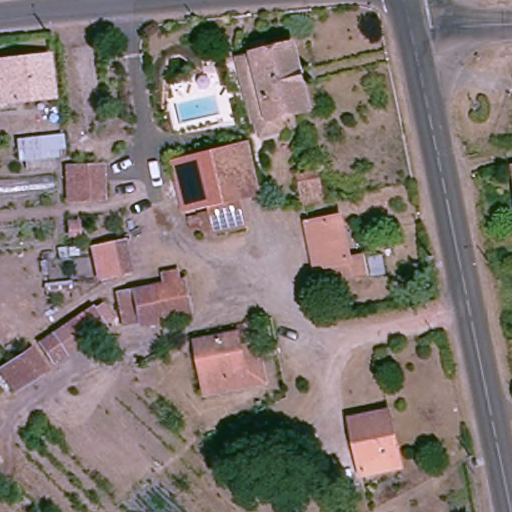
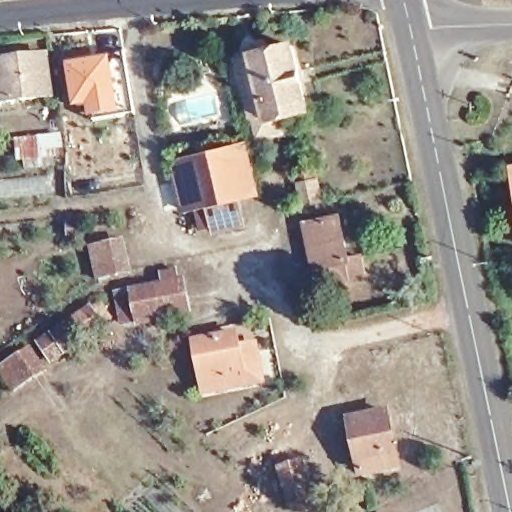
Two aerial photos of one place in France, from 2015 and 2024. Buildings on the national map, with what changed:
unchanged [(266,129),(263,114),(246,50),(302,36),(318,100),(304,104),(308,118),(266,129)]
unchanged [(52,52),(57,92),(0,99),(0,59),(52,52)]
new [(110,57),(118,116),(88,119),(86,108),(72,109),(66,65),(110,57)]
unchanged [(14,156),(11,137),(56,131),(58,151),(14,156)]
unchanged [(251,141),(263,189),(243,194),(231,146),(251,141)]
unchanged [(243,194),(214,201),(203,152),(231,146),(243,194)]
unchanged [(214,201),(243,194),(249,221),(218,227),(218,225),(206,227),(200,205),(188,207),(176,159),(203,152),(214,201)]
unchanged [(102,167),(103,199),(67,200),(66,168),(79,167),(79,157),(93,157),(93,167),(102,167)]
unchanged [(322,201),(304,205),(297,179),(315,174),(322,201)]
unchanged [(353,256),(365,253),(369,272),(342,277),(338,260),(320,263),(311,220),(343,213),(353,256)]
unchanged [(121,267),(89,272),(87,262),(92,261),(87,236),(98,234),(100,245),(117,242),(121,267)]
unchanged [(179,276),(185,306),(118,321),(112,290),(179,276)]
unchanged [(92,296),(107,318),(45,362),(30,338),(92,296)]
unchanged [(249,363),(265,360),(269,378),(209,390),(199,337),(242,329),(249,363)]
unchanged [(25,342),(42,368),(5,394),(0,385),(0,358),(25,342)]
unchanged [(403,462),(367,469),(356,416),(392,408),(403,462)]

